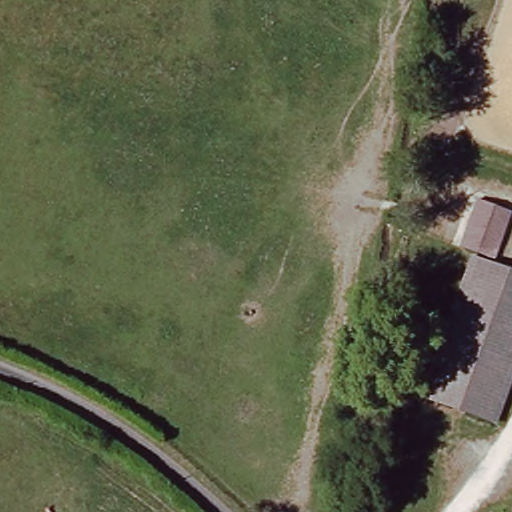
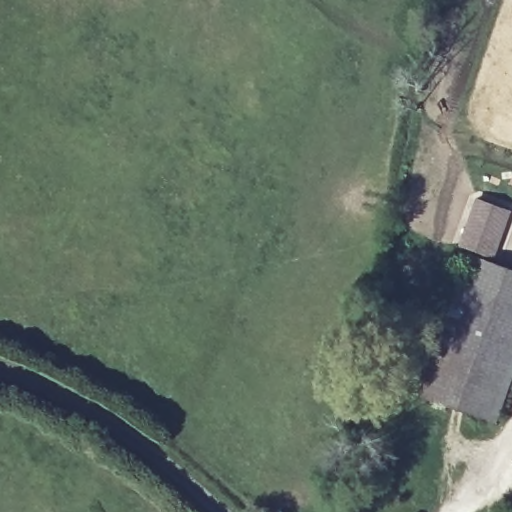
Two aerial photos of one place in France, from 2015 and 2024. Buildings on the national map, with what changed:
unchanged [(476,210),(507,220),(495,263),(464,253),(476,210)]
unchanged [(502,429),(431,408),(475,266),(512,277),(512,397),(502,429)]

